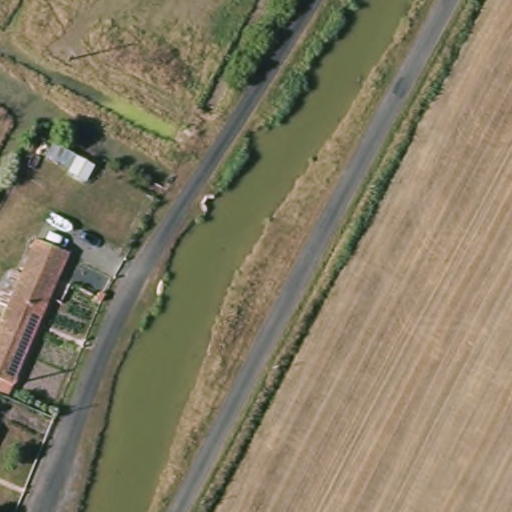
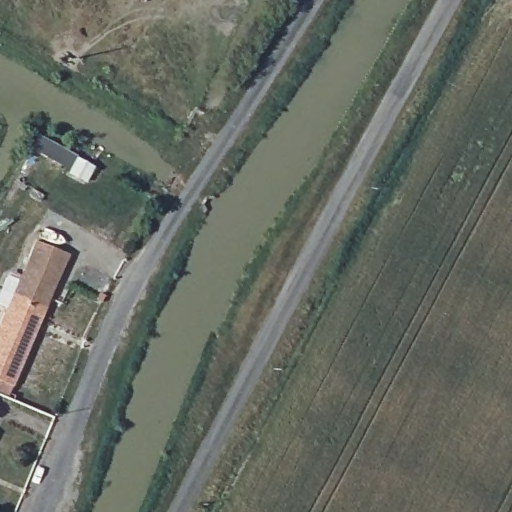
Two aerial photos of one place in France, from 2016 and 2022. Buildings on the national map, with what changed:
unchanged [(0,387),(0,342),(44,242),(75,257),(12,392),(0,387)]

